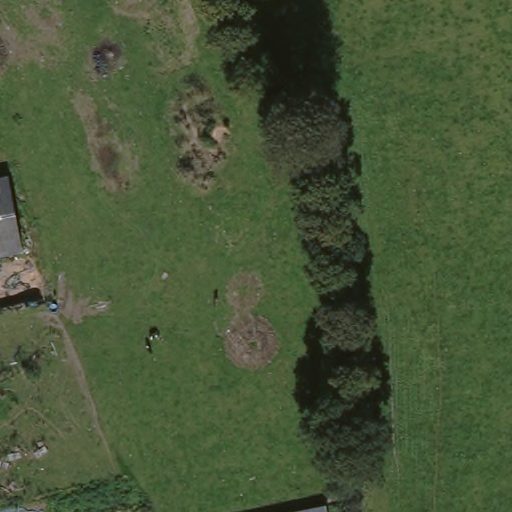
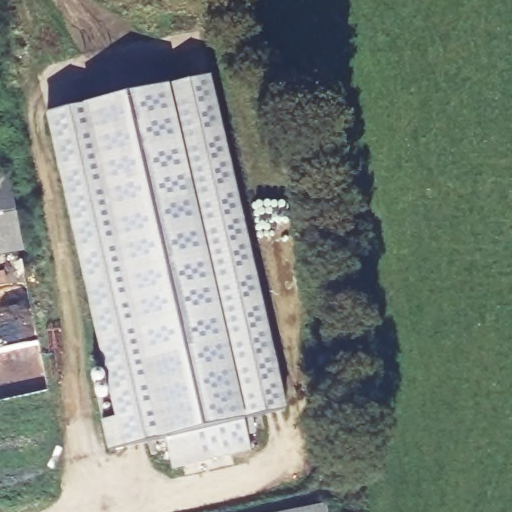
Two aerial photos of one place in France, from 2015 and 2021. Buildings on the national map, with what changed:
new [(102,423),(116,419),(47,116),(211,78),(286,410),(256,417),(260,434),(247,436),(250,451),(173,470),(166,438),(160,439),(108,452),(102,423)]
unchanged [(23,252),(0,257),(0,176),(9,174),(23,252)]
unchanged [(337,512),(306,512),(336,506),(337,512)]

